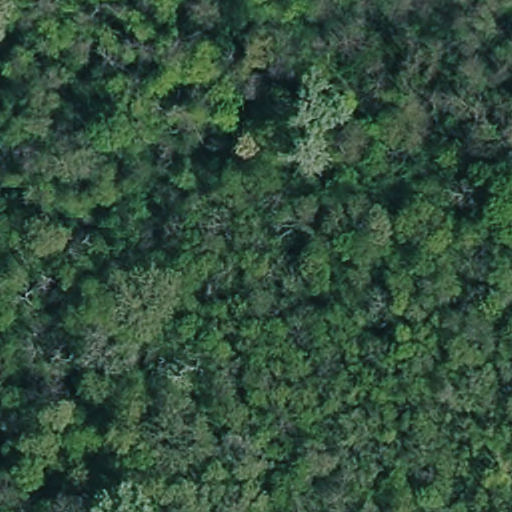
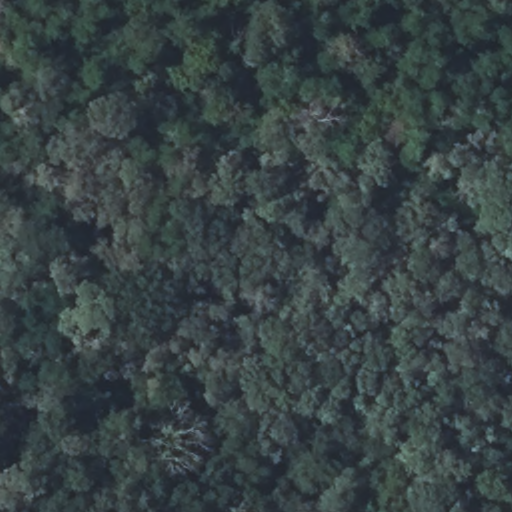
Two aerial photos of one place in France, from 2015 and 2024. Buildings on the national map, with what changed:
[]

